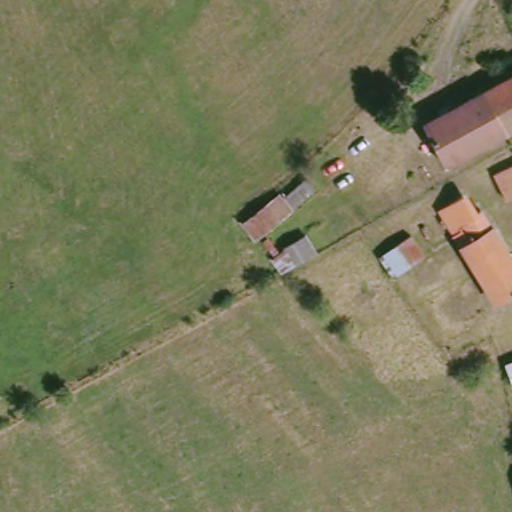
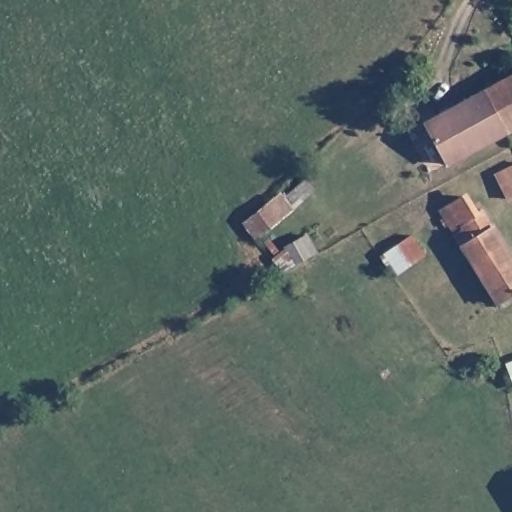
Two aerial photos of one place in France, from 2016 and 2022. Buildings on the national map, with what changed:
unchanged [(512,77),(512,122),(495,87),(512,77)]
unchanged [(457,157),(437,118),(495,87),(512,122),(512,128),(457,157)]
unchanged [(510,201),(497,177),(512,169),(512,200),(510,201)]
unchanged [(320,190),(296,208),(301,211),(258,241),(244,223),(286,192),(289,195),(309,178),(320,190)]
unchanged [(463,191),(475,209),(483,204),(512,252),(512,296),(502,301),(442,204),(463,191)]
unchanged [(436,243),(425,250),(430,257),(383,285),(352,305),(343,293),(391,266),(383,254),(424,230),(436,243)]
unchanged [(509,364),(512,363),(512,373),(509,364)]

